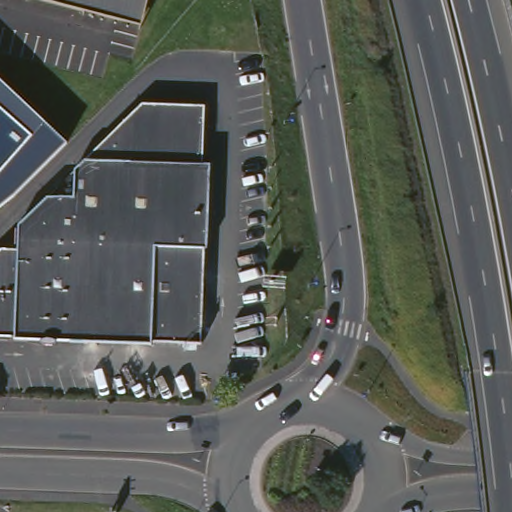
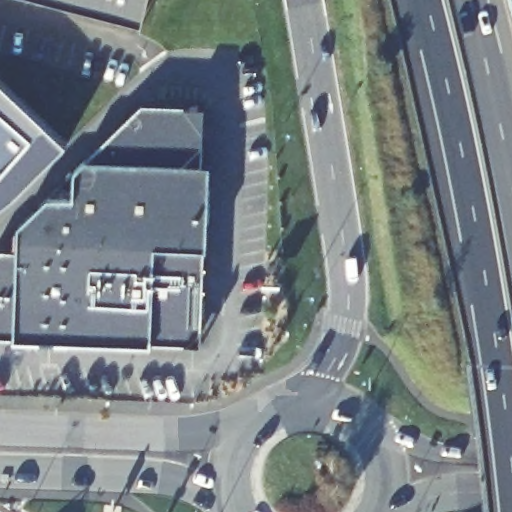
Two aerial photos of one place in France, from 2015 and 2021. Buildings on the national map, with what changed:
unchanged [(152,26),(50,0),(159,0),(152,26)]
unchanged [(69,143),(14,198),(0,208),(0,79),(69,143)]
unchanged [(215,100),(213,158),(221,159),(218,245),(215,245),(212,340),(163,338),(162,341),(24,336),(24,333),(0,332),(0,255),(11,244),(27,245),(27,222),(58,192),(84,193),(84,165),(152,98),(215,100)]

